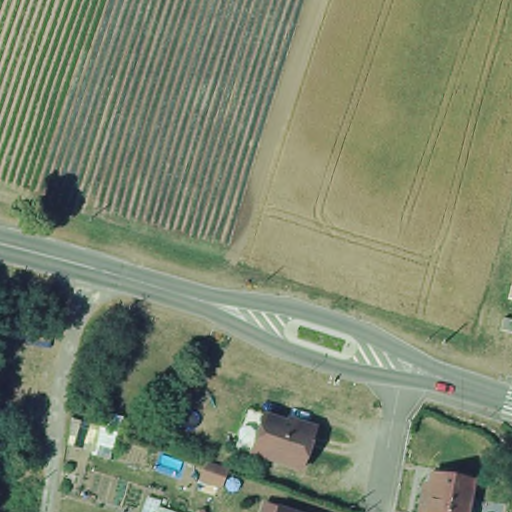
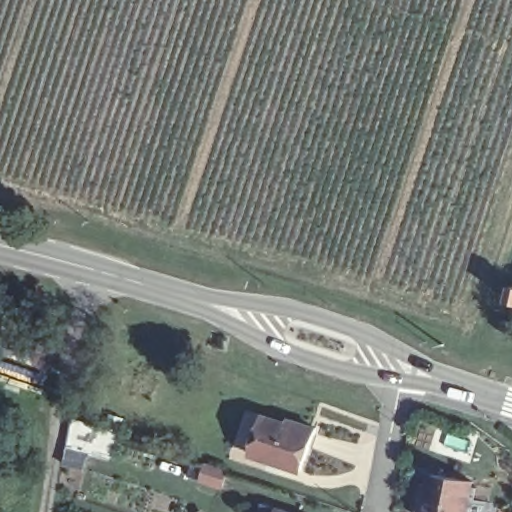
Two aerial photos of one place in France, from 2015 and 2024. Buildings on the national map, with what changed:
unchanged [(286,423),(312,432),(297,475),(248,458),(230,452),(243,414),(261,420),(285,428),(286,423)]
unchanged [(227,471),(221,489),(202,483),(208,465),(227,471)]
unchanged [(414,512),(421,478),(427,479),(427,475),(469,484),(463,512),(414,512)]
unchanged [(275,512),(266,512),(267,509),(275,512)]

